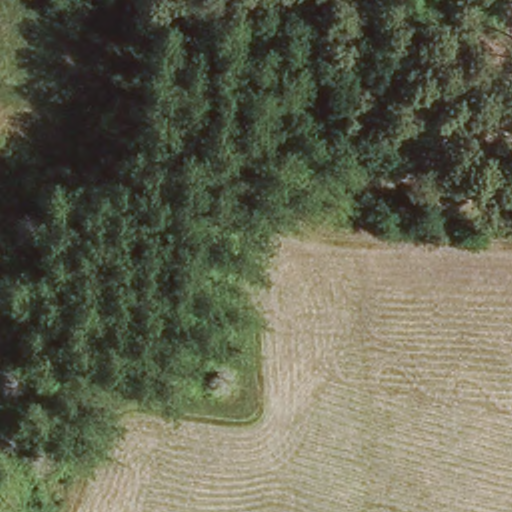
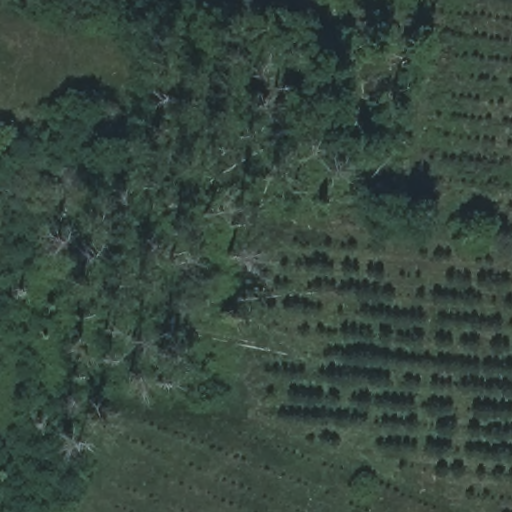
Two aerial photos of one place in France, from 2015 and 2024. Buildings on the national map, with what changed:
[]

